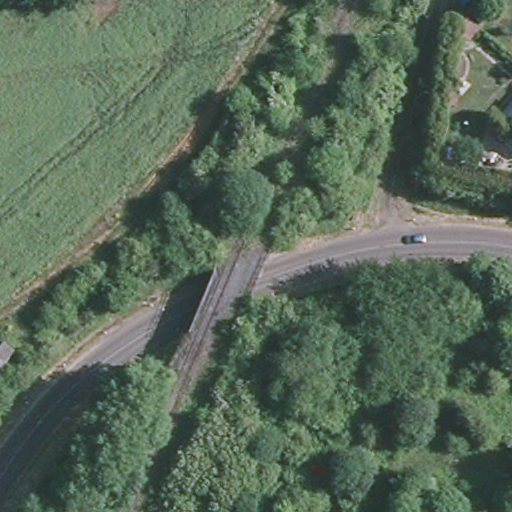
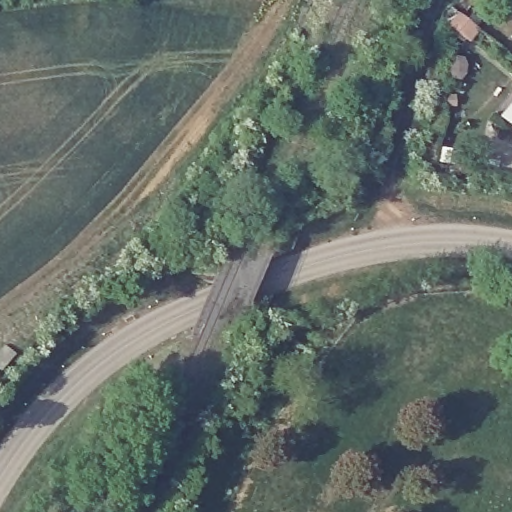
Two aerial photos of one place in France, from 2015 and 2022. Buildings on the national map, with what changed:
unchanged [(482,34),(472,46),(457,34),(467,22),(482,34)]
unchanged [(503,122),(512,111),(512,130),(503,122)]

